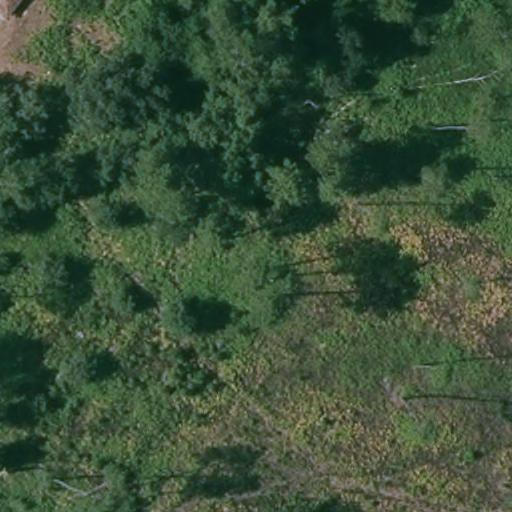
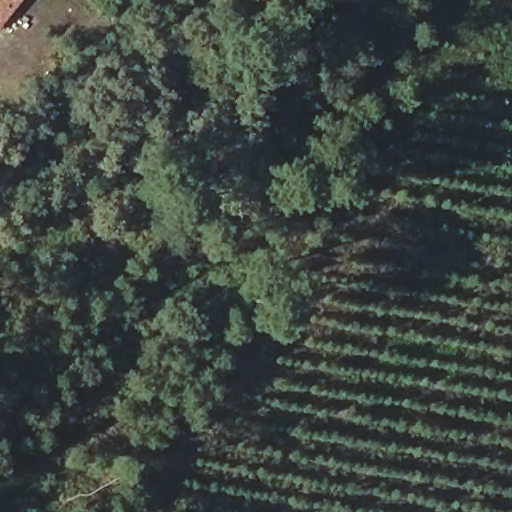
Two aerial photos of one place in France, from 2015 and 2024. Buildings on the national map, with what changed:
unchanged [(10,22),(0,14),(0,0),(27,0),(10,22)]

